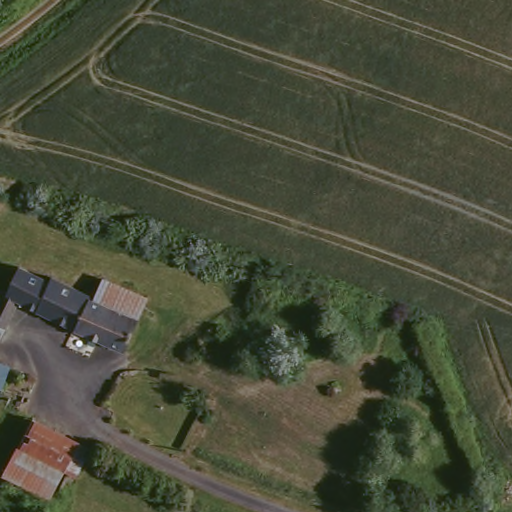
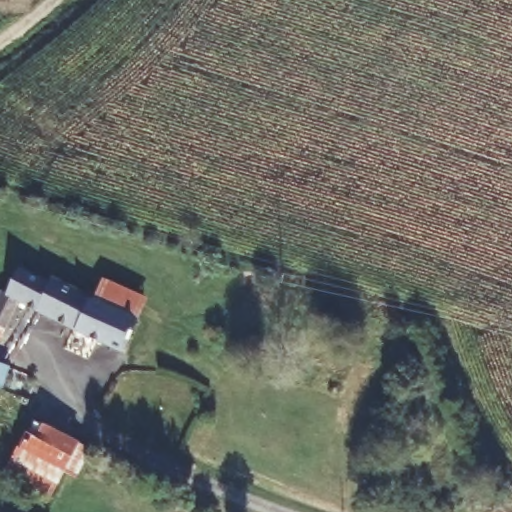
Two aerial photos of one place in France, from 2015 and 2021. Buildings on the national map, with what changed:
unchanged [(0,335),(0,305),(6,292),(11,292),(24,268),(52,280),(93,294),(103,278),(153,298),(130,347),(25,304),(8,338),(0,335)]
unchanged [(0,392),(0,368),(9,371),(1,392),(0,392)]
unchanged [(100,447),(83,474),(70,468),(52,499),(7,472),(38,416),(100,447)]

